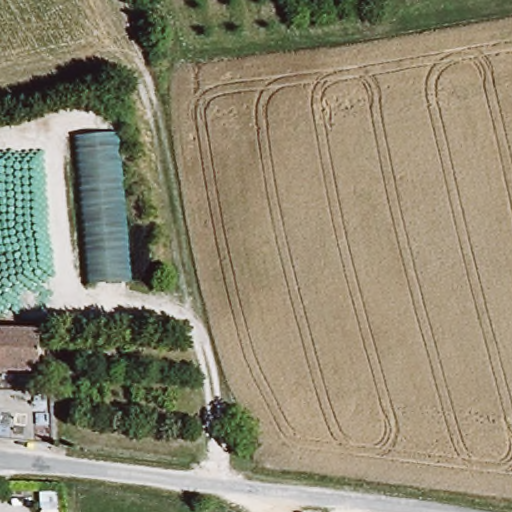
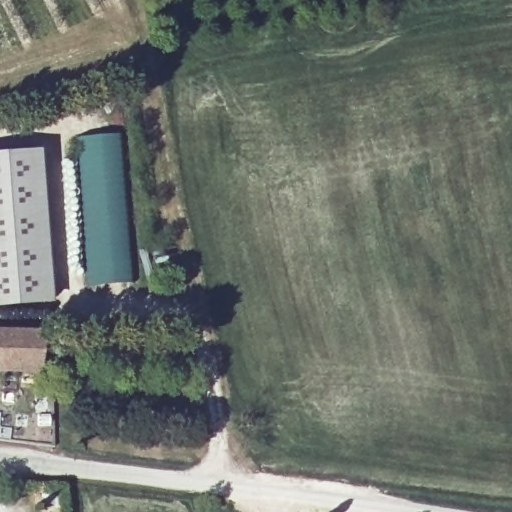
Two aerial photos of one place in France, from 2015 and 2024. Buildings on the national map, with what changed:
unchanged [(131,285),(88,288),(77,141),(122,134),(131,285)]
new [(52,302),(0,306),(0,154),(41,150),(52,302)]
unchanged [(36,367),(0,367),(0,327),(37,327),(36,367)]

